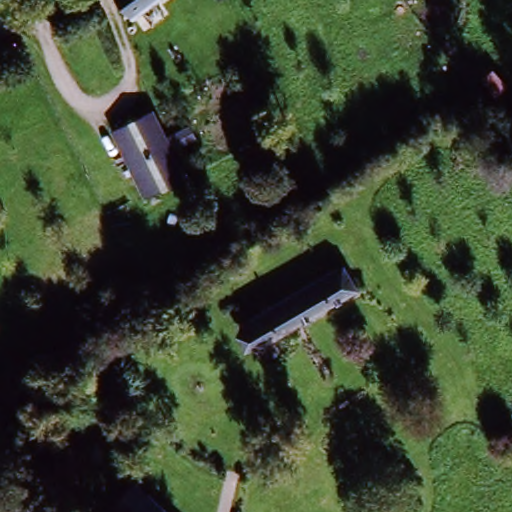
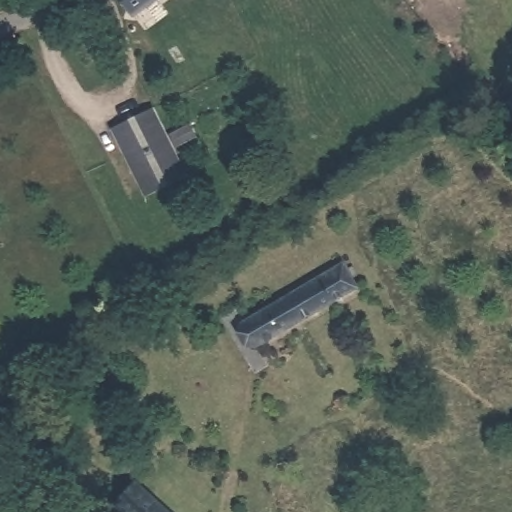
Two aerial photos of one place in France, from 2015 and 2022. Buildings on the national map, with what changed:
unchanged [(133,10),(125,0),(147,0),(133,10)]
unchanged [(165,133),(188,122),(195,138),(173,148),(188,178),(143,199),(110,129),(152,108),(165,133)]
unchanged [(236,323),(336,263),(347,282),(353,279),(357,285),(351,289),(250,346),(236,323)]
unchanged [(135,479),(170,512),(126,512),(115,501),(135,479)]

